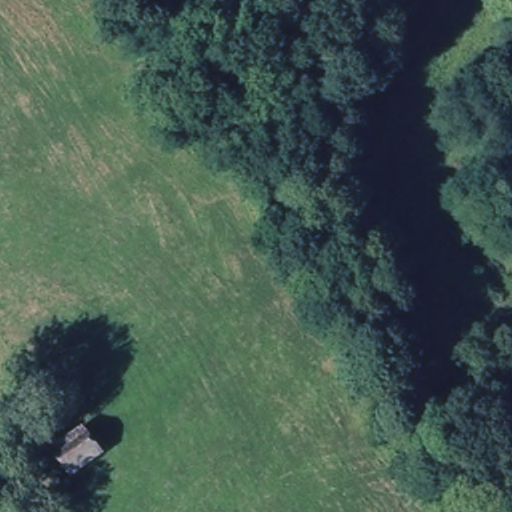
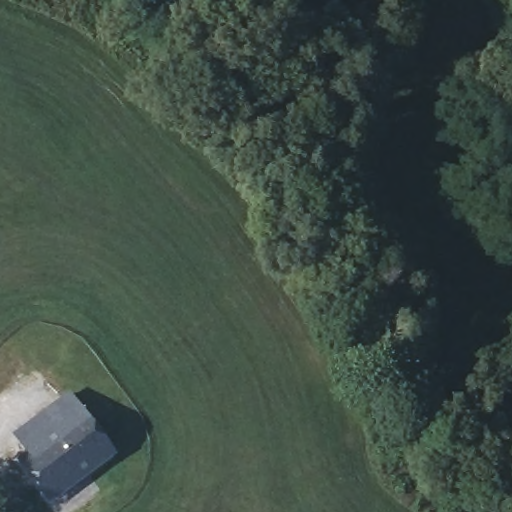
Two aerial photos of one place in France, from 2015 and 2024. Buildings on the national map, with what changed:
new [(47,504),(17,461),(26,453),(13,436),(68,393),(114,453),(47,504)]
demolished [(74,477),(50,446),(69,434),(82,427),(106,456),(74,477)]

